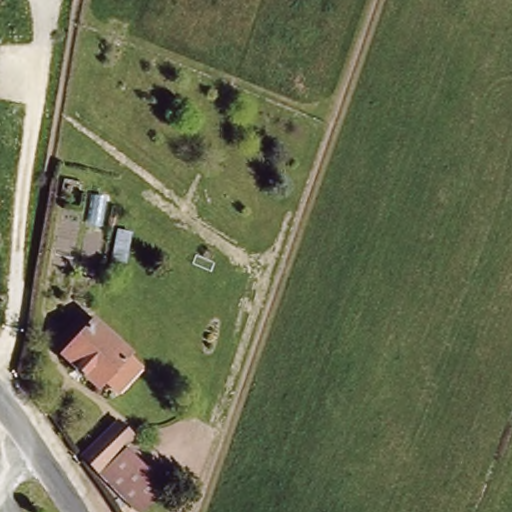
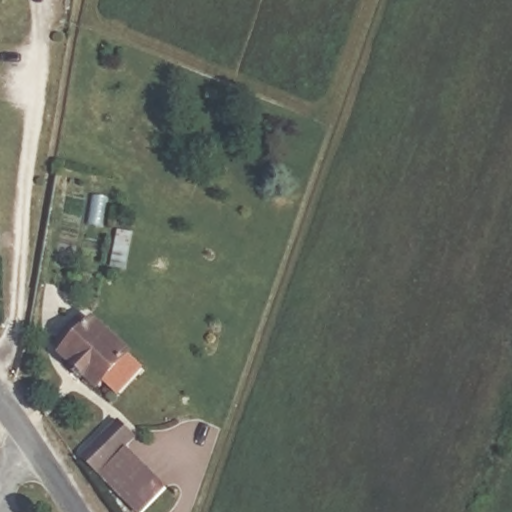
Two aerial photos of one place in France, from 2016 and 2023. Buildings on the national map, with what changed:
unchanged [(113,393),(109,389),(108,390),(71,357),(73,355),(64,347),(81,329),(89,321),(98,329),(103,324),(143,362),(113,393)]
unchanged [(110,421),(125,436),(114,448),(136,470),(116,491),(78,454),(110,421)]

